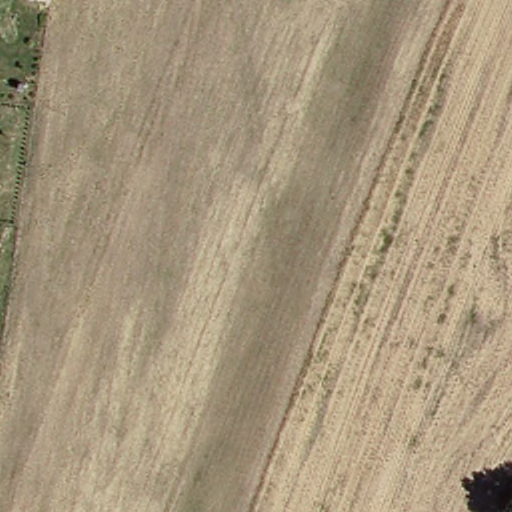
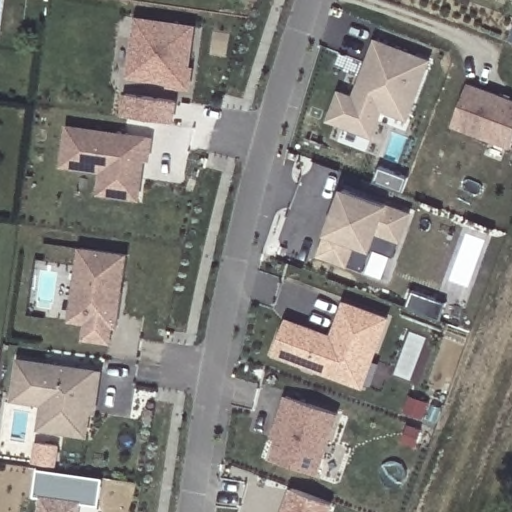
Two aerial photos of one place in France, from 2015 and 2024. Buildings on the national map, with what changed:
new [(126,79),(134,20),(192,28),(187,69),(191,70),(187,91),(165,88),(165,84),(126,79)]
new [(336,95),(356,103),(369,70),(363,68),(372,44),(426,64),(405,123),(378,113),(368,140),(325,123),(336,95)]
new [(512,98),(512,150),(453,128),(470,82),(512,98)]
new [(124,96),(174,103),(170,125),(120,118),(124,96)]
new [(99,197),(101,175),(61,169),(67,125),(156,138),(153,164),(147,163),(142,202),(99,197)]
new [(346,190),(415,216),(398,263),(375,255),(367,277),(321,261),(346,190)]
new [(85,338),(87,323),(72,321),(81,249),(129,256),(117,328),(114,328),(112,343),(85,338)]
new [(335,337),(347,304),(388,318),(363,386),(276,354),(287,320),(335,337)]
new [(88,436),(41,429),(44,406),(14,401),(20,360),(96,371),(88,436)]
new [(270,440),(280,413),(285,398),(336,415),(315,477),(270,461),(276,443),(270,440)]
new [(295,492),(333,505),(331,512),(287,512),(295,492)]
new [(43,497),(81,502),(80,512),(41,512),(43,497)]

